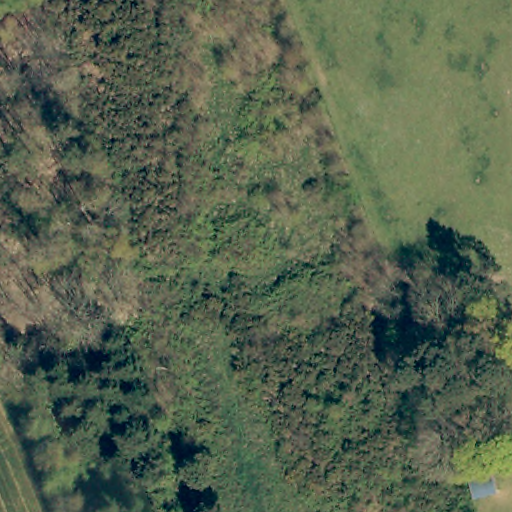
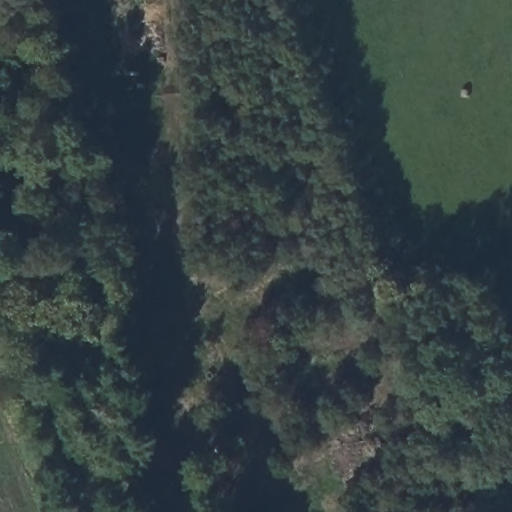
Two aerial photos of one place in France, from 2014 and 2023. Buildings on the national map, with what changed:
[]

